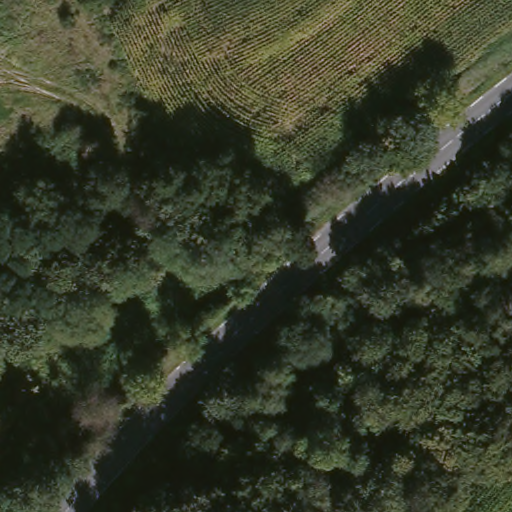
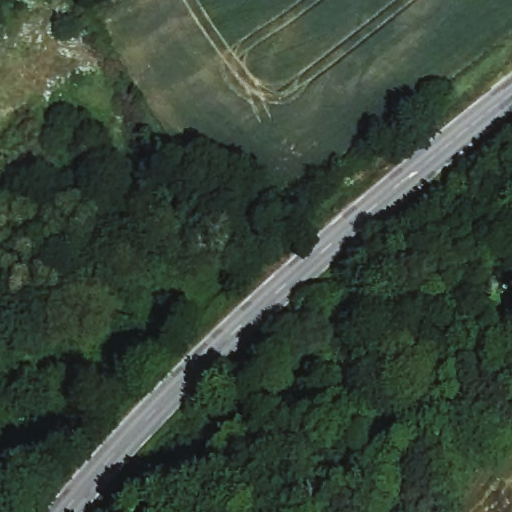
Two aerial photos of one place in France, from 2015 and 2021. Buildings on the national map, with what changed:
unchanged [(0,495),(0,470),(7,471),(3,495),(0,495)]

